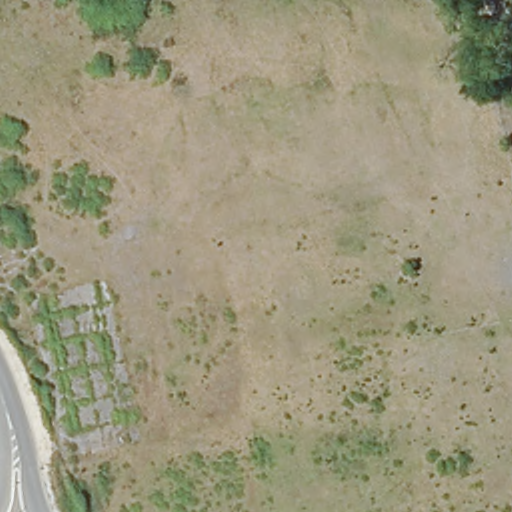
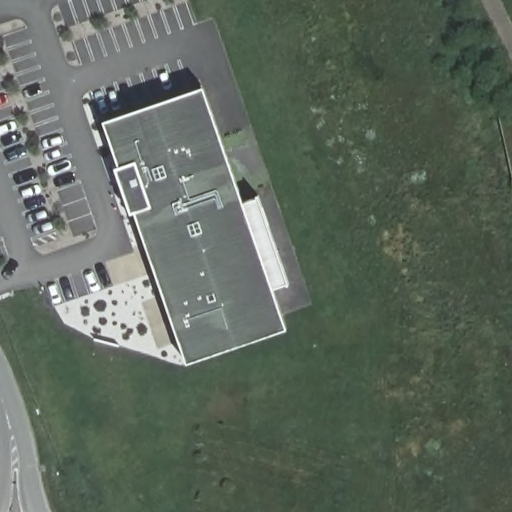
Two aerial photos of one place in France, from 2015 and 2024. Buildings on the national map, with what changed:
new [(290,283),(273,289),(287,329),(189,363),(136,212),(131,213),(115,168),(120,166),(105,121),(205,87),(245,203),(260,197),(290,283)]

